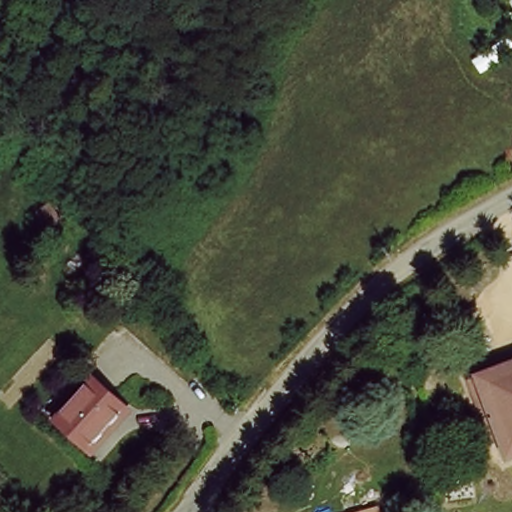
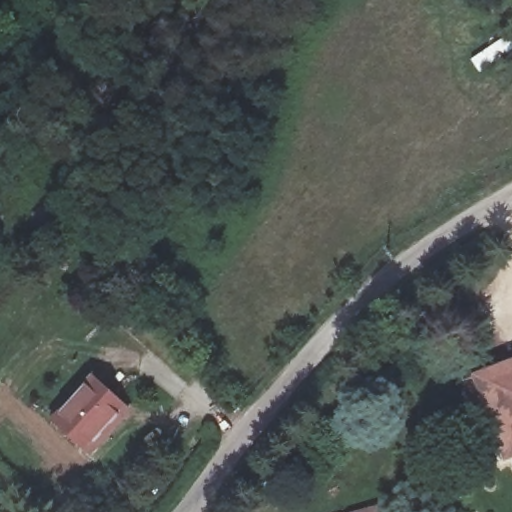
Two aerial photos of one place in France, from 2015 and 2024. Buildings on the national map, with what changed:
unchanged [(510,0),(512,0),(512,5),(510,0)]
unchanged [(506,465),(475,377),(512,363),(512,463),(506,465)]
unchanged [(92,372),(129,411),(90,451),(52,410),(92,372)]
unchanged [(386,508),(386,512),(364,512),(386,508)]

